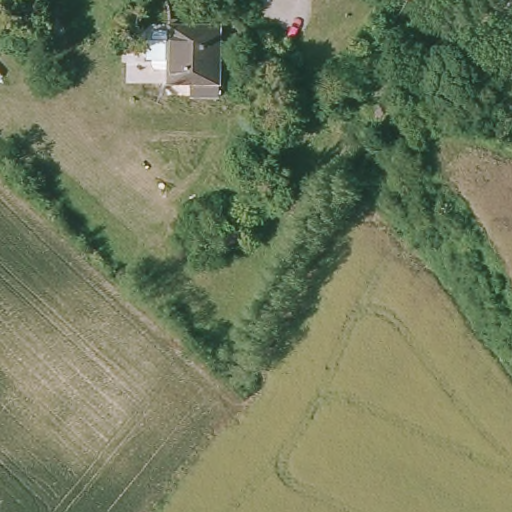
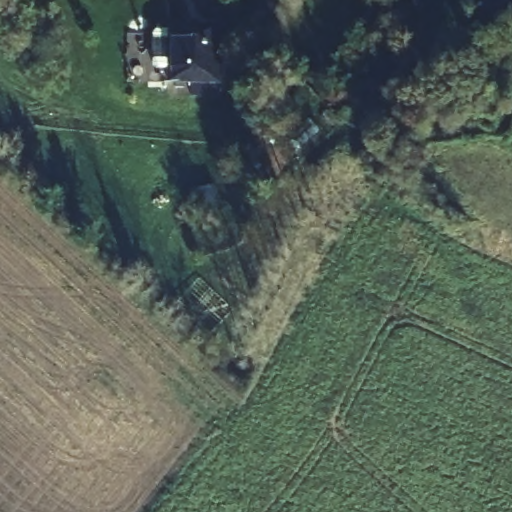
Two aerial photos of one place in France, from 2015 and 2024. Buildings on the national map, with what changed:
unchanged [(508,0),(512,0),(512,2),(508,0)]
unchanged [(161,88),(161,32),(212,32),(213,88),(161,88)]

